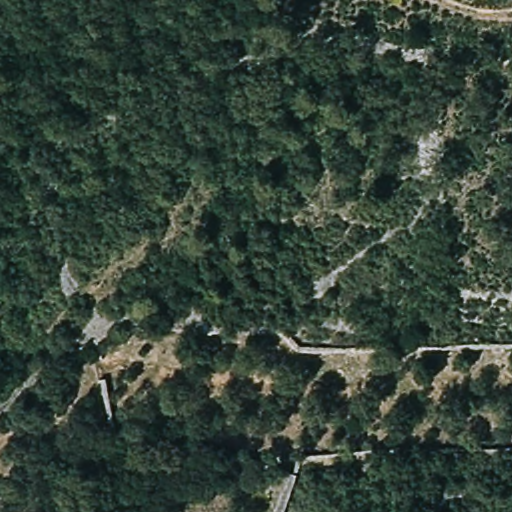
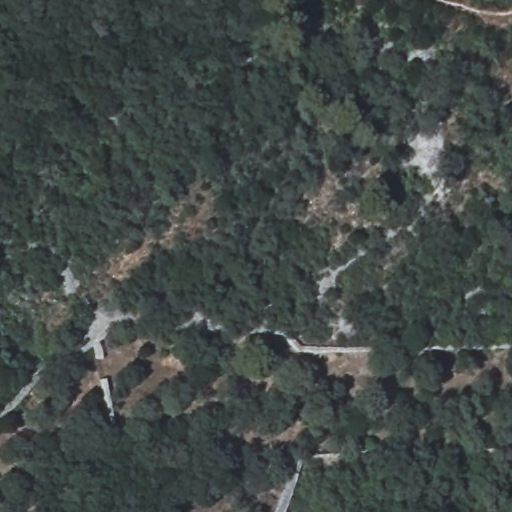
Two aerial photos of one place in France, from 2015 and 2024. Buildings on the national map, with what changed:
unchanged [(180,310),(203,309),(203,325),(180,325),(180,310)]

